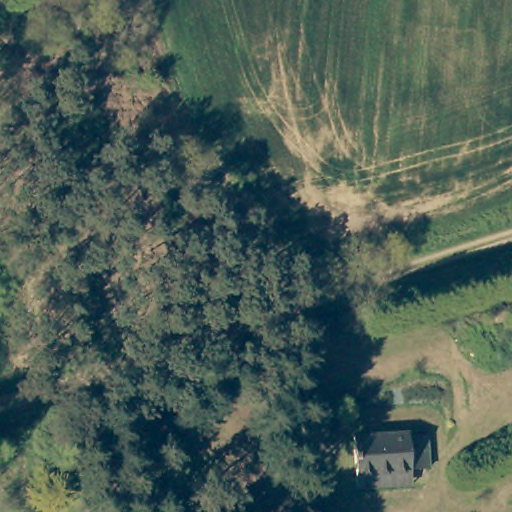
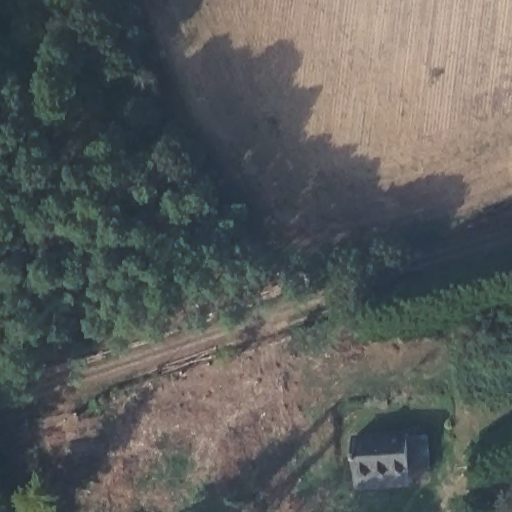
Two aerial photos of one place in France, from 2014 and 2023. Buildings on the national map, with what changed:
unchanged [(352,435),(361,435),(425,435),(425,472),(407,473),(408,488),(358,489),(353,489),(353,475),(352,435)]

